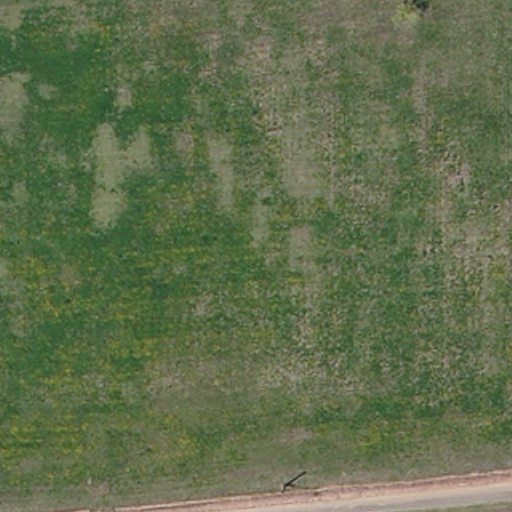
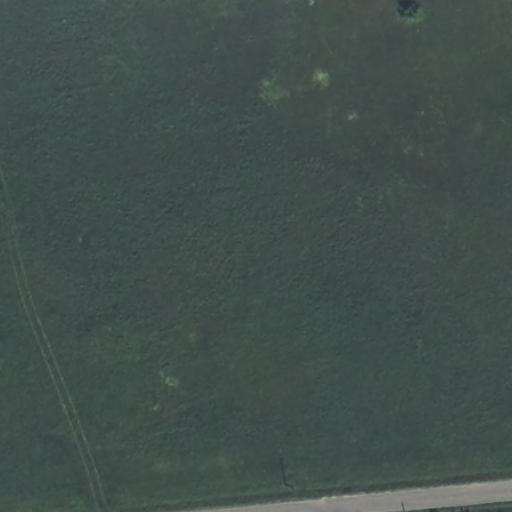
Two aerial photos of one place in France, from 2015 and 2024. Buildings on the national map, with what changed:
[]

